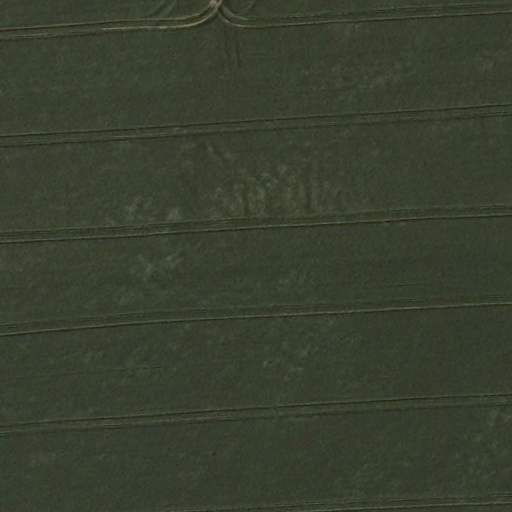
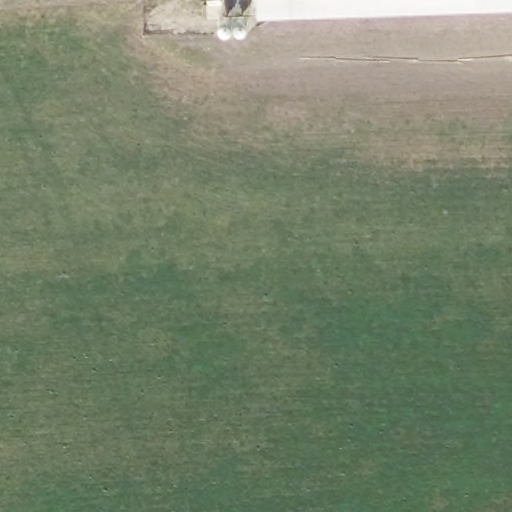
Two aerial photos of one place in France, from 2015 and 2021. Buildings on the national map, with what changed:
new [(512,9),(257,19),(256,0),(512,0),(512,9)]

